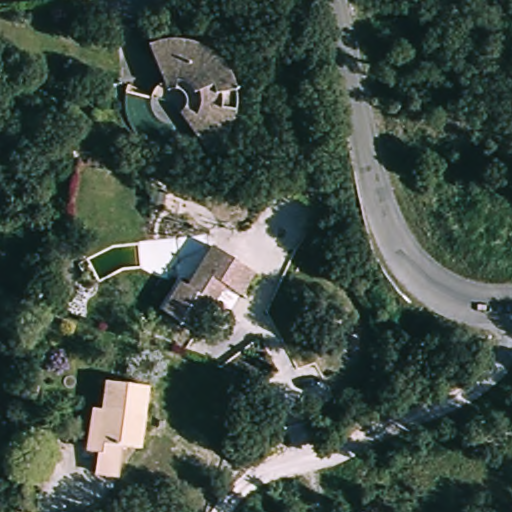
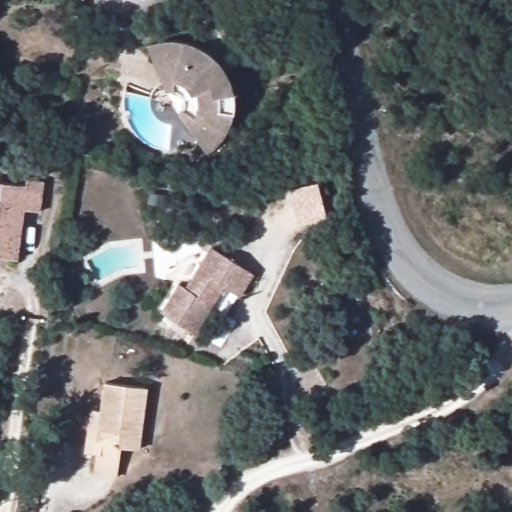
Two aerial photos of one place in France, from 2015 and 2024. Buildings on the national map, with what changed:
unchanged [(152,95),(162,80),(147,44),(161,40),(175,39),(189,41),(203,47),(215,56),(225,66),(229,72),(234,86),(236,100),(235,115),(231,129),(229,134),(217,148),(202,160),(197,163),(179,116),(184,106),(184,101),(181,95),(175,93),(170,93),(169,93),(170,103),(152,101),(152,95)]
new [(17,260),(0,258),(0,183),(24,186),(24,180),(44,183),(40,214),(24,211),(17,260)]
unchanged [(191,280),(217,247),(255,277),(239,298),(227,289),(197,329),(163,301),(184,275),(191,280)]
unchanged [(90,406),(100,407),(105,378),(145,388),(135,452),(106,445),(103,457),(84,454),(90,406)]

